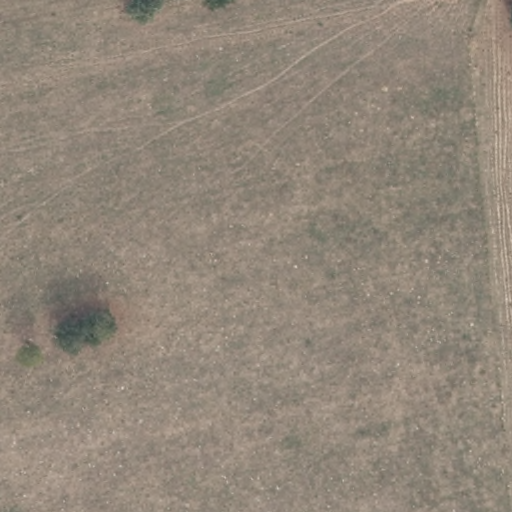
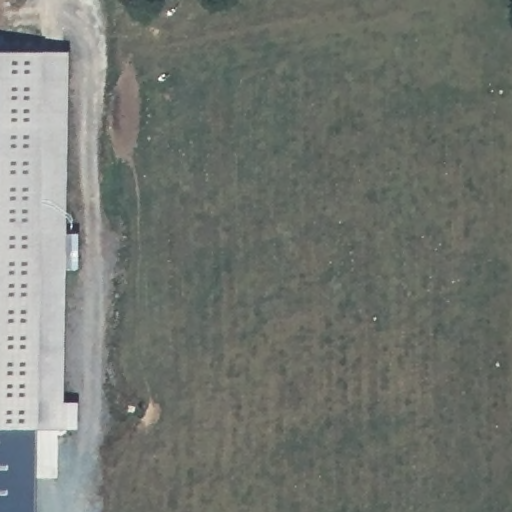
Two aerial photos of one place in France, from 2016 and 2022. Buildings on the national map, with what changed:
new [(62,231),(74,231),(74,267),(61,267),(60,399),(74,400),(73,428),(30,428),(28,512),(0,512),(0,49),(65,50),(62,231)]

